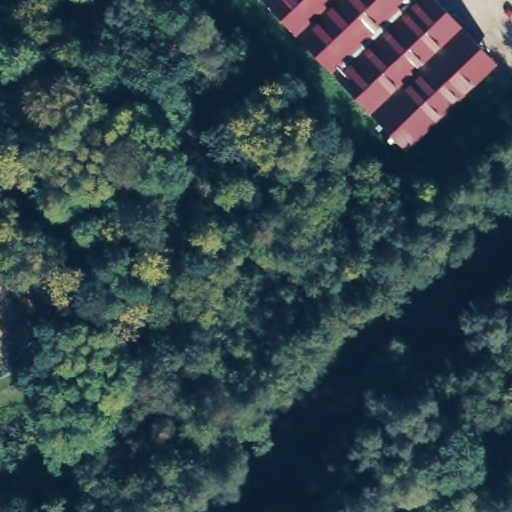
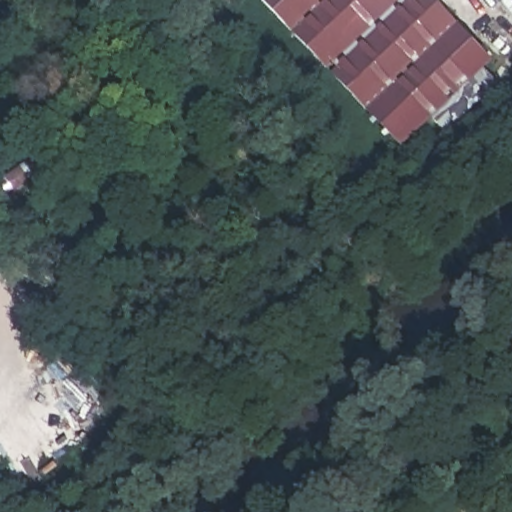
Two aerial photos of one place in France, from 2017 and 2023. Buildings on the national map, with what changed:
unchanged [(264,0),(403,0),(328,69),(264,0)]
unchanged [(402,145),(333,75),(413,0),(435,0),(493,59),(402,145)]

